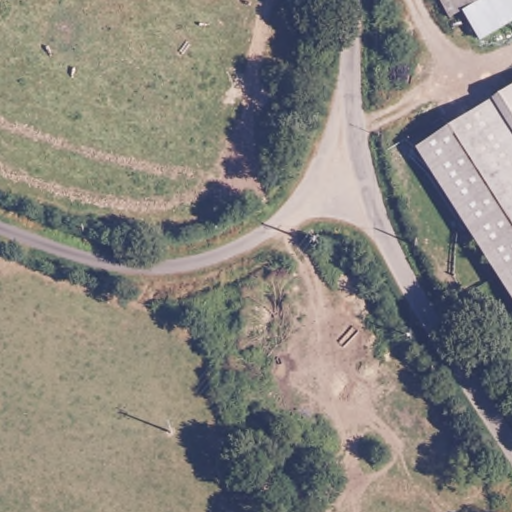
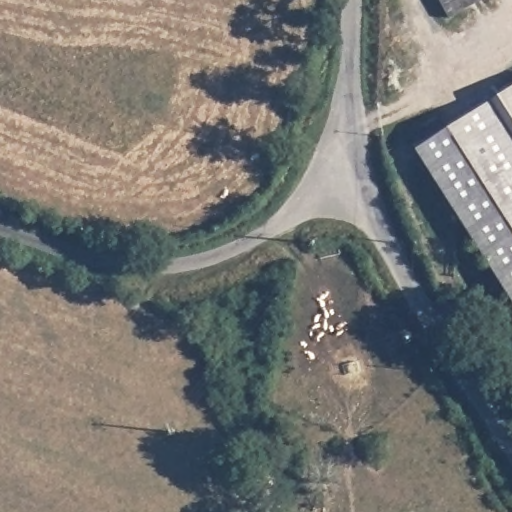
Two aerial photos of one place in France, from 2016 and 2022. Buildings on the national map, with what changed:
unchanged [(436,0),(461,0),(456,3),(442,10),(436,0)]
unchanged [(495,99),(512,89),(512,125),(495,99)]
unchanged [(512,125),(512,298),(417,149),(495,99),(512,125)]

